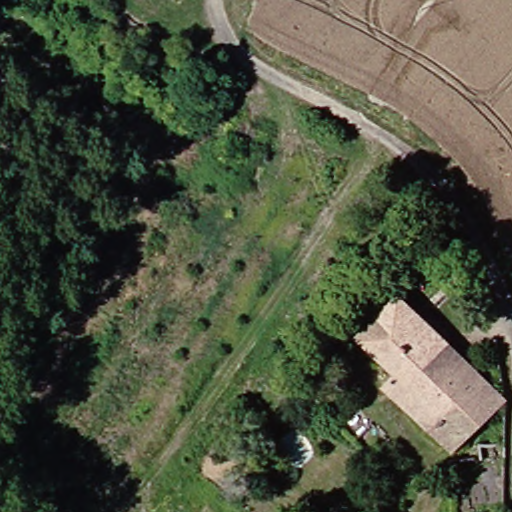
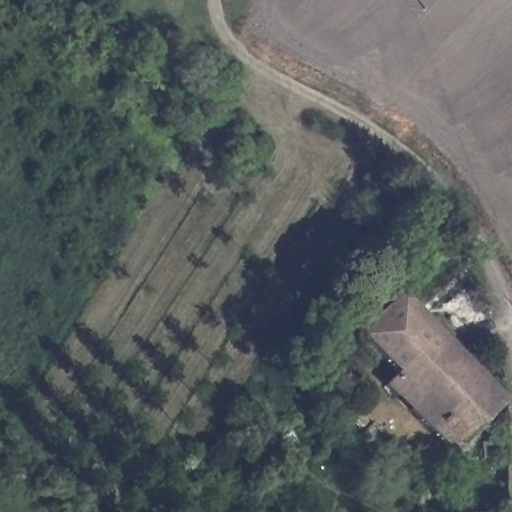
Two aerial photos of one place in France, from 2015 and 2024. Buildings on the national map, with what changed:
unchanged [(385,385),(375,375),(386,363),(352,328),(391,288),(437,333),(385,385)]
unchanged [(437,333),(453,348),(400,400),(385,385),(437,333)]
unchanged [(453,348),(497,392),(445,445),(400,400),(453,348)]

